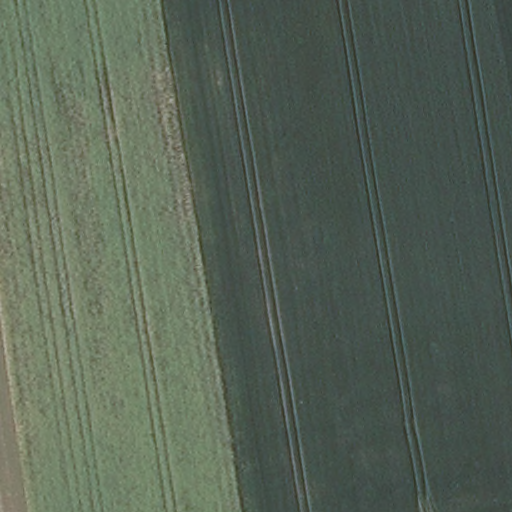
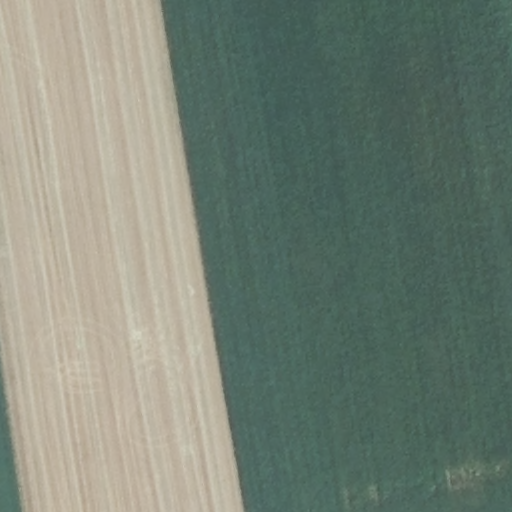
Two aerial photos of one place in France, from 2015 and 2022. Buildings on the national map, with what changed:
[]

